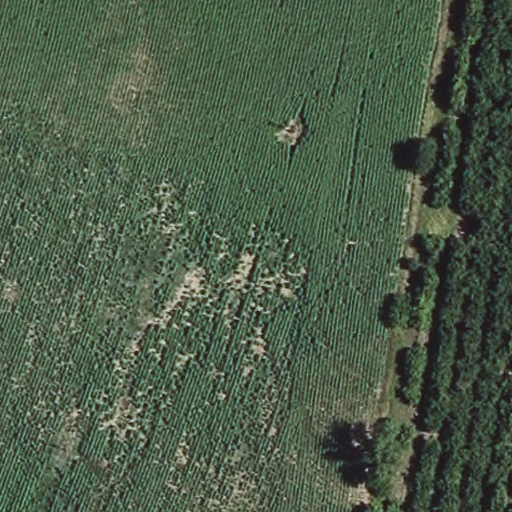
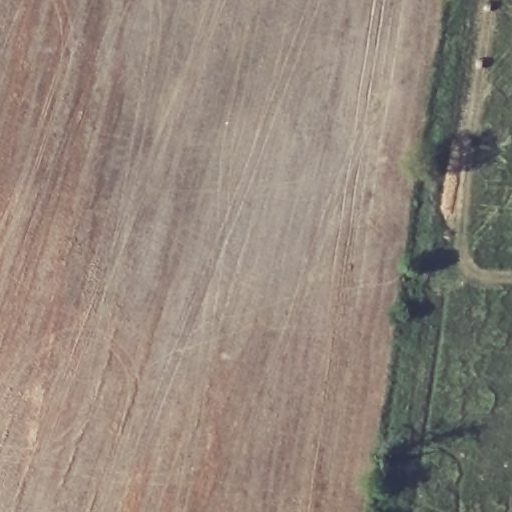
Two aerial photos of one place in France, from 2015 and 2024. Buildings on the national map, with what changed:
[]

